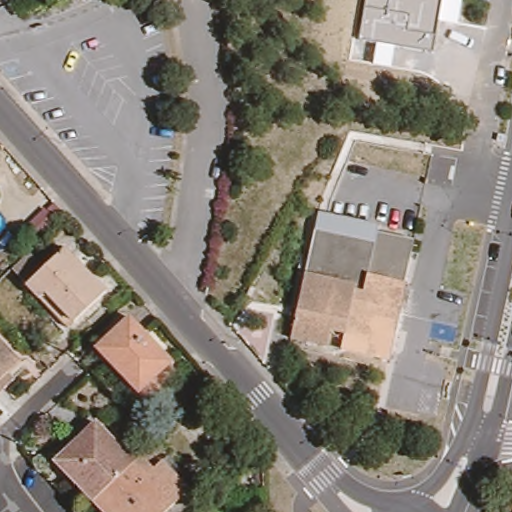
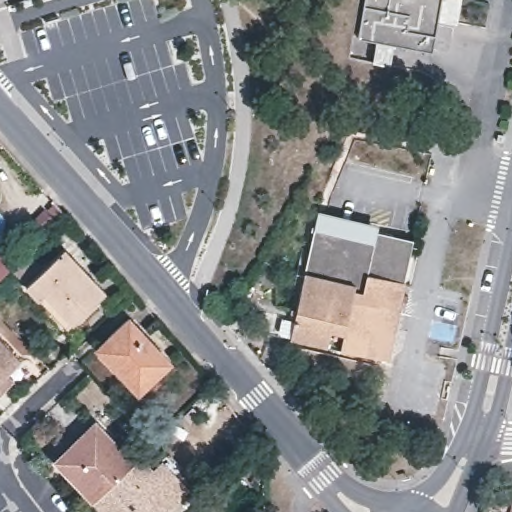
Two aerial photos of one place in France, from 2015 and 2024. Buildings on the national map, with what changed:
unchanged [(438,18),(433,49),(395,44),(391,65),(373,62),(376,42),(359,40),(365,0),(462,0),(458,22),(438,18)]
unchanged [(398,348),(395,364),(298,342),(322,232),(325,222),(385,236),(400,239),(420,244),(418,254),(401,337),(407,338),(405,350),(398,348)]
unchanged [(50,292),(23,262),(40,246),(55,262),(75,243),(115,286),(83,316),(78,321),(50,292)]
unchanged [(175,361),(143,390),(102,347),(135,317),(175,361)]
unchanged [(10,371),(16,378),(0,394),(0,337),(21,360),(10,371)]
unchanged [(132,467),(94,504),(57,463),(95,425),(132,467)]
unchanged [(94,504),(132,467),(139,461),(152,473),(168,459),(181,473),(176,479),(187,492),(177,501),(178,502),(167,512),(101,512),(94,504)]

